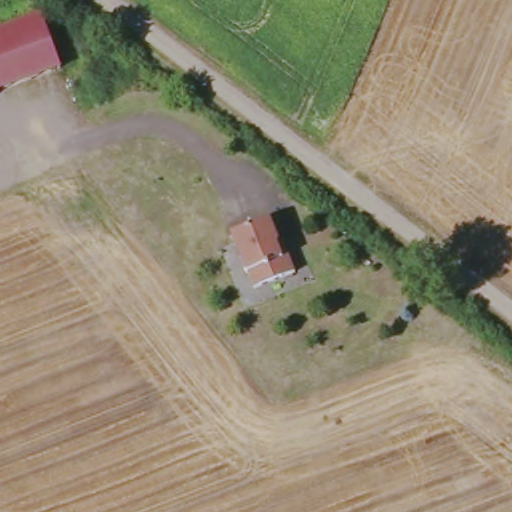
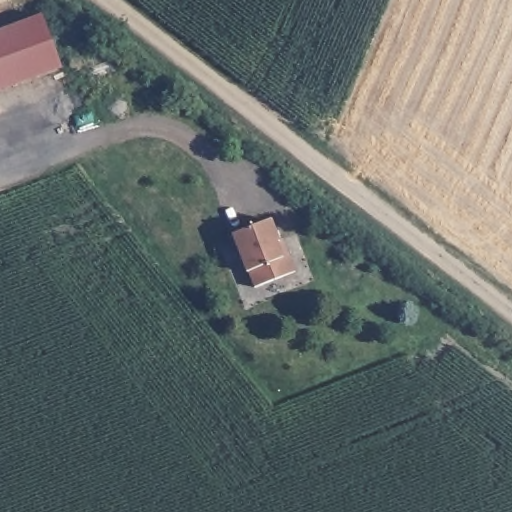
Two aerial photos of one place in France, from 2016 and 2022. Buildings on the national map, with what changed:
unchanged [(44,17),(65,71),(0,94),(0,33),(44,17)]
unchanged [(270,221),(279,243),(284,241),(295,271),(256,287),(249,270),(245,271),(232,236),(270,221)]

